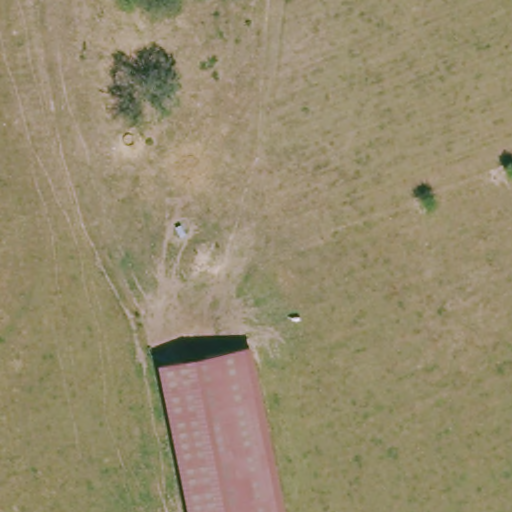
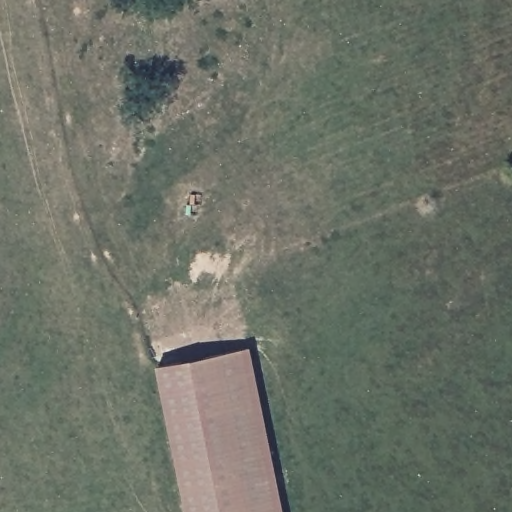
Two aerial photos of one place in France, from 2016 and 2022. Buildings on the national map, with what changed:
unchanged [(188,512),(158,367),(250,348),(283,512),(188,512)]

